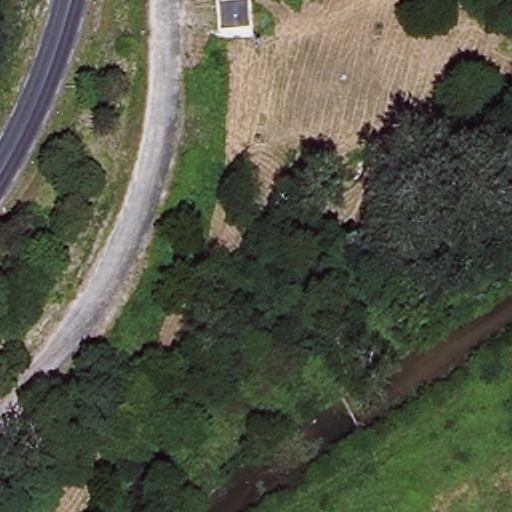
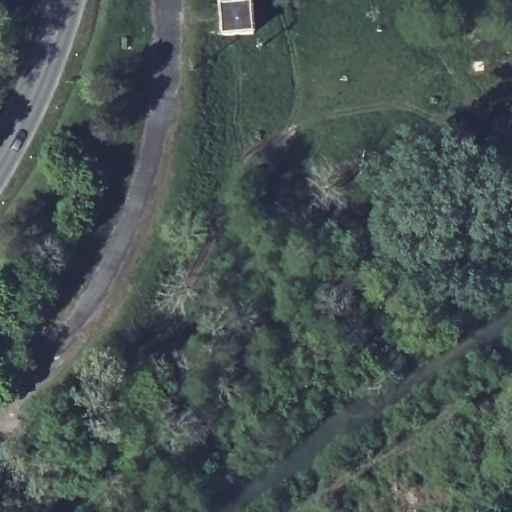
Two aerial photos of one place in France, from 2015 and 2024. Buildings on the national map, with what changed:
unchanged [(222,4),(251,1),(254,32),(224,34),(222,4)]

